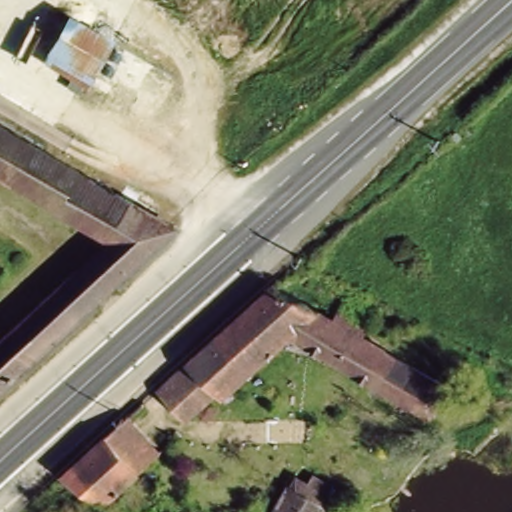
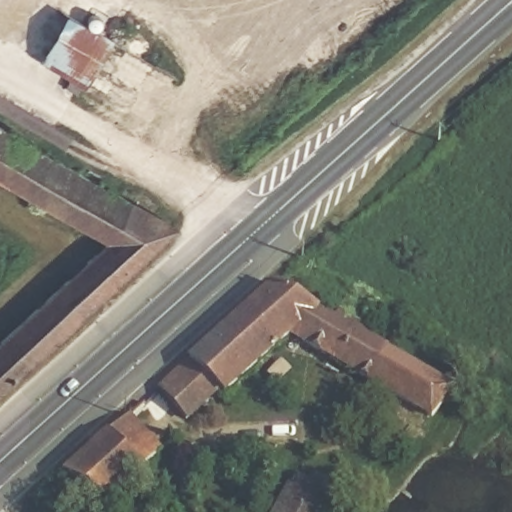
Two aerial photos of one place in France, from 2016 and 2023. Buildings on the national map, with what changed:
unchanged [(81,15),(178,77),(147,123),(50,62),(81,15)]
unchanged [(0,379),(0,338),(110,231),(0,160),(0,114),(173,223),(0,379)]
unchanged [(223,400),(212,389),(187,416),(160,381),(276,278),(337,315),(345,305),(370,321),(363,334),(460,388),(432,419),(296,331),(223,400)]
unchanged [(113,429),(132,411),(164,451),(144,467),(113,429)]
unchanged [(90,512),(62,476),(113,429),(144,467),(90,512)]
unchanged [(294,512),(304,491),(337,508),(335,512),(294,512)]

